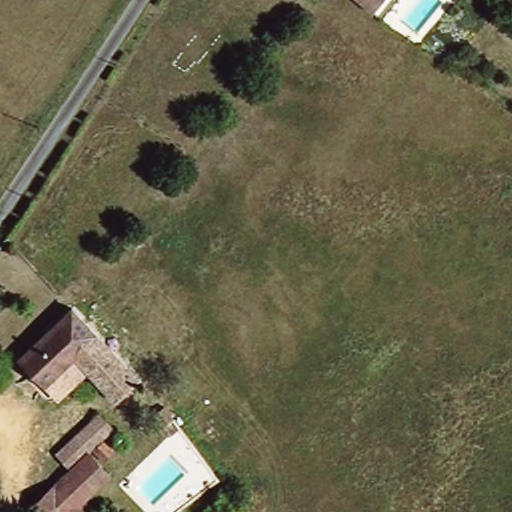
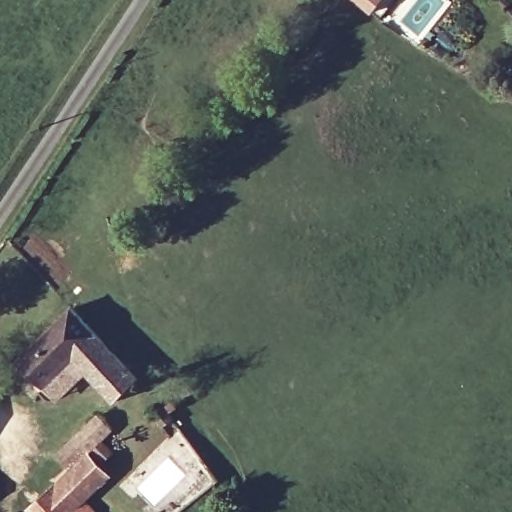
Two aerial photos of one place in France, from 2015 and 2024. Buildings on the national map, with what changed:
unchanged [(370,13),(353,0),(381,0),(370,13)]
unchanged [(44,386),(15,356),(69,305),(142,381),(117,404),(74,357),(44,386)]
unchanged [(164,440),(150,426),(164,414),(177,427),(164,440)]
unchanged [(39,476),(102,417),(124,439),(112,450),(117,454),(109,463),(96,450),(65,480),(52,491),(49,486),(39,476)]
unchanged [(36,512),(29,504),(49,486),(52,491),(65,480),(85,501),(79,508),(81,512),(36,512)]

